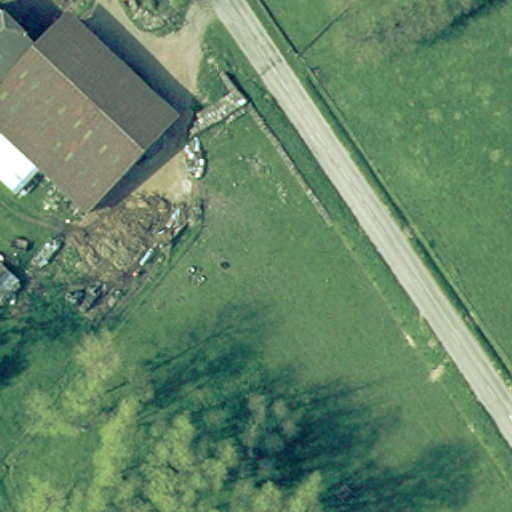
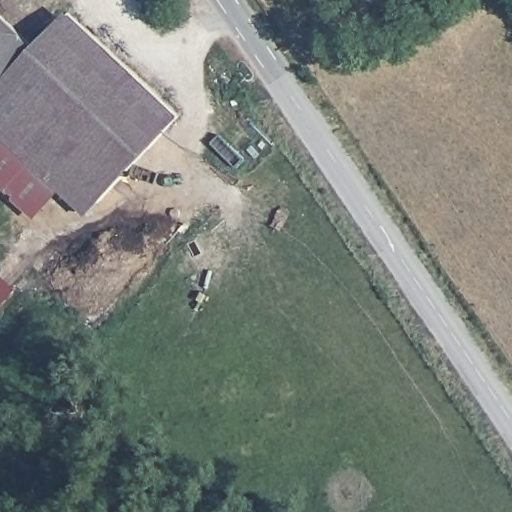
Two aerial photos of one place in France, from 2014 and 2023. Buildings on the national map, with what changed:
unchanged [(50,27),(64,14),(172,117),(159,131),(50,27)]
unchanged [(30,45),(0,78),(0,16),(30,45)]
unchanged [(17,187),(37,168),(0,132),(0,78),(30,45),(50,27),(159,131),(83,214),(55,186),(37,206),(17,187)]
new [(58,189),(34,217),(0,185),(0,138),(3,135),(37,168),(55,186),(58,189)]
unchanged [(20,287),(0,308),(0,268),(20,287)]

